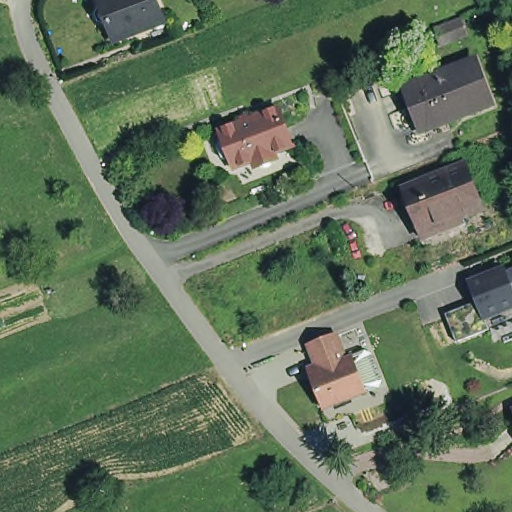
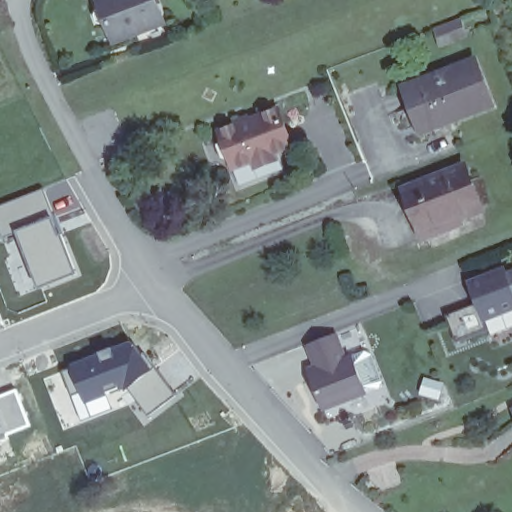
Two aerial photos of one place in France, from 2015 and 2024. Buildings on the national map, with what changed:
unchanged [(110,29),(109,25),(106,26),(99,24),(96,17),(99,10),(102,9),(99,0),(155,0),(160,9),(165,23),(116,43),(110,29)]
unchanged [(481,80),(488,99),(492,110),(424,136),(420,125),(413,107),(407,93),(476,66),(481,80)]
unchanged [(283,161),(261,169),(260,164),(259,163),(240,169),(237,162),(228,158),(226,154),(223,146),(229,140),(226,133),(285,110),(292,129),(300,148),(280,154),(281,155),(283,161)]
unchanged [(482,207),(456,217),(460,225),(425,239),(405,188),(465,164),(482,207)]
new [(45,189),(56,218),(53,219),(61,237),(64,236),(77,274),(41,288),(19,233),(3,239),(0,230),(0,206),(45,189)]
unchanged [(512,311),(486,321),(475,284),(512,270),(512,311)]
unchanged [(354,357),(365,353),(372,356),(382,382),(380,388),(368,393),(325,410),(311,374),(319,371),(312,354),(309,346),(337,334),(340,343),(347,360),(354,357)]
new [(120,348),(135,388),(75,413),(58,368),(120,348)]
new [(7,384),(23,424),(0,432),(0,387),(7,384)]

